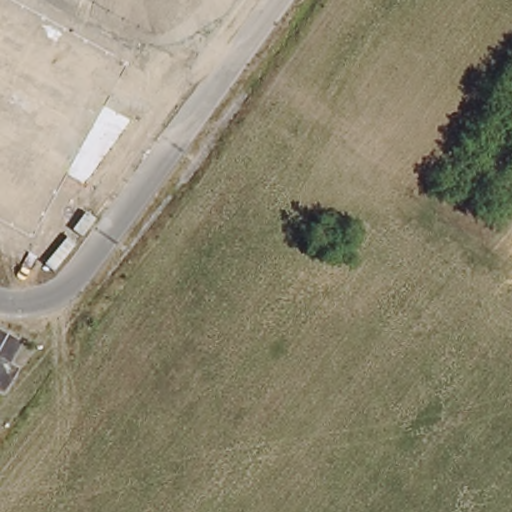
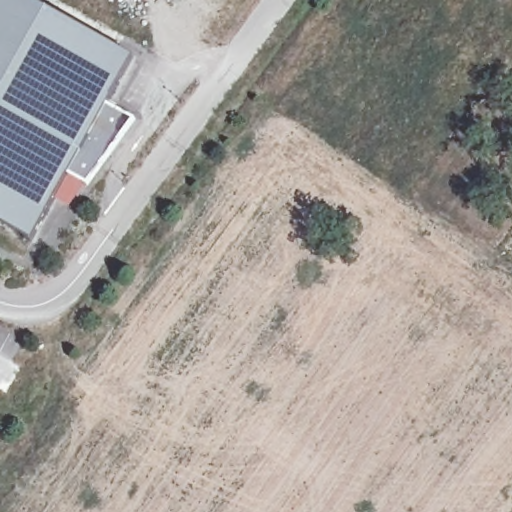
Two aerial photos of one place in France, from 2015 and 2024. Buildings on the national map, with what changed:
new [(137,120),(88,186),(84,184),(69,208),(53,200),(30,240),(0,224),(0,0),(29,0),(135,57),(108,106),(137,120)]

